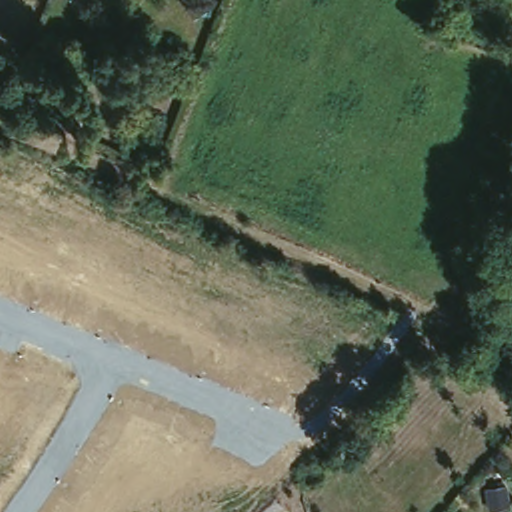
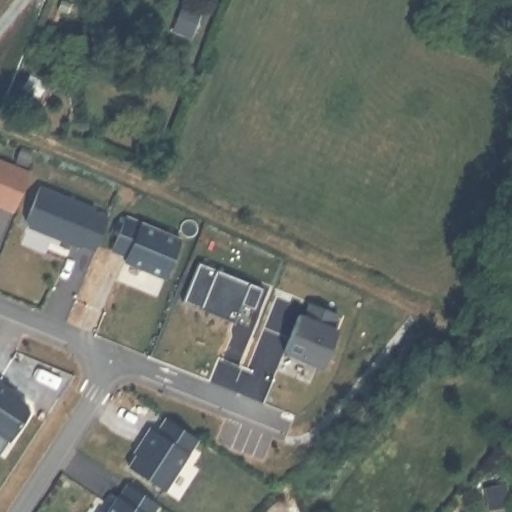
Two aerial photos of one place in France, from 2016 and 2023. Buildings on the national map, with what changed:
new [(12,209),(0,204),(0,157),(27,169),(12,209)]
new [(27,224),(24,218),(38,183),(94,206),(93,208),(107,214),(93,248),(79,243),(78,245),(47,233),(40,230),(27,224)]
new [(124,213),(180,235),(164,274),(122,257),(125,252),(110,246),(124,213)]
new [(262,289),(254,313),(238,306),(232,322),(182,303),(198,265),(262,289)]
new [(300,309),(305,311),(311,297),(340,309),(334,323),(340,326),(323,366),(301,357),(301,355),(283,347),(300,309)]
new [(7,391),(26,403),(27,409),(8,438),(0,433),(0,383),(9,388),(7,391)]
new [(140,444),(137,442),(149,426),(156,430),(165,415),(196,436),(162,487),(127,465),(140,444)]
new [(105,511),(116,494),(117,495),(126,481),(156,501),(148,512),(99,512),(101,509),(105,511)]

